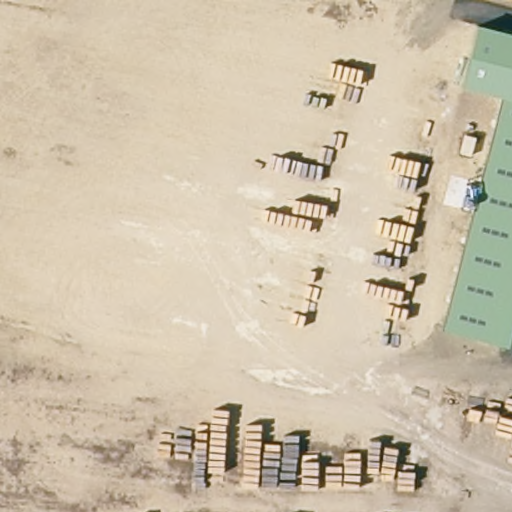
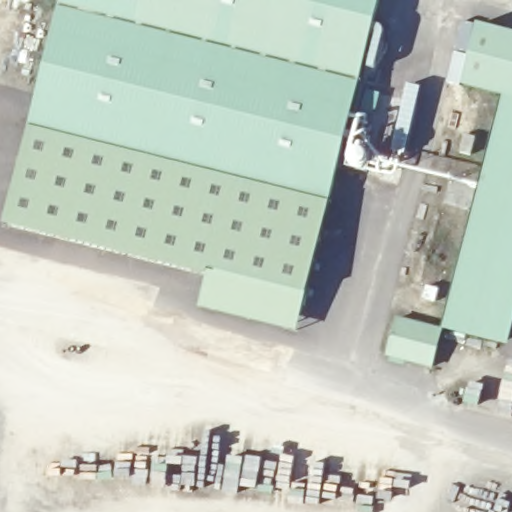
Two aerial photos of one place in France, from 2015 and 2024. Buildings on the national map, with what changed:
new [(379,0),(297,332),(197,305),(208,274),(2,225),(59,0),(379,0)]
unchanged [(502,96),(461,85),(477,21),(512,31),(512,338),(510,346),(441,329),(502,96)]
new [(431,366),(386,356),(396,315),(441,329),(431,366)]

